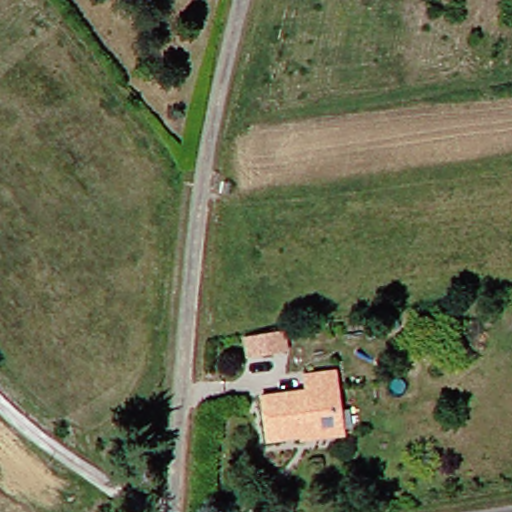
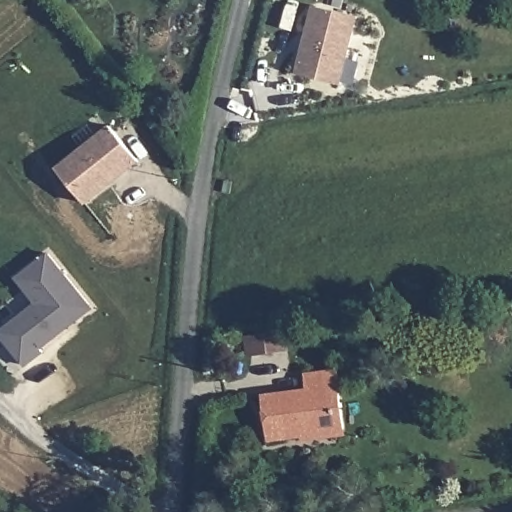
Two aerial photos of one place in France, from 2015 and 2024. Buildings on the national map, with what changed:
new [(312,5),(357,17),(341,85),(295,71),(312,5)]
new [(83,202),(55,168),(107,125),(136,159),(116,175),(107,182),(83,202)]
new [(35,305),(13,279),(43,255),(87,307),(70,322),(64,327),(37,350),(40,353),(23,367),(3,343),(0,340),(0,334),(13,323),(35,305)]
new [(283,331),(286,347),(271,350),(247,354),(245,338),(268,333),(283,331)]
unchanged [(312,442),(311,432),(262,443),(256,401),(302,393),(297,375),(332,368),(343,425),(345,436),(312,442)]

